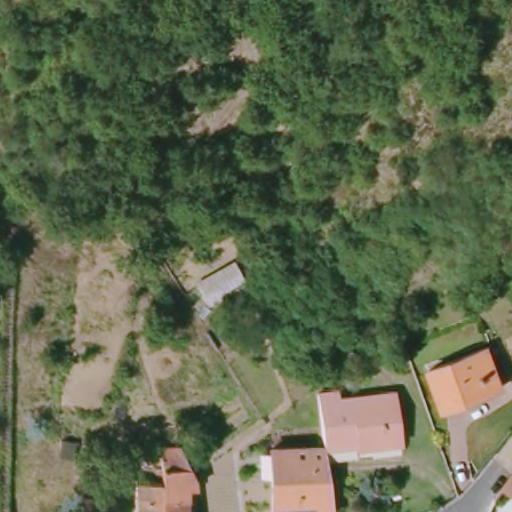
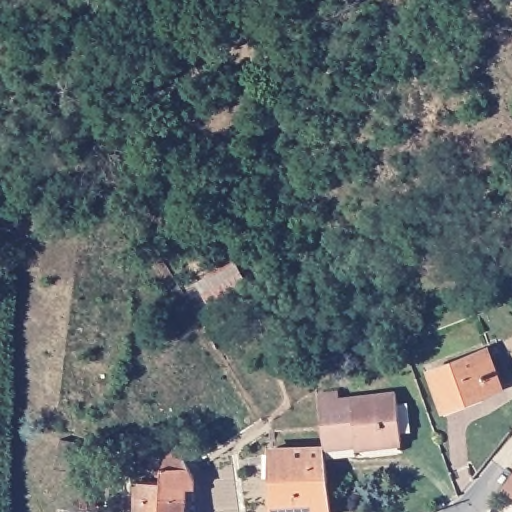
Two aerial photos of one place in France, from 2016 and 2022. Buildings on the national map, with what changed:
unchanged [(480,391),(478,387),(440,403),(425,368),(482,344),(500,382),(480,391)]
unchanged [(351,445),(320,448),(313,391),(337,389),(339,399),(392,394),(397,436),(397,444),(380,446),(365,448),(352,449),(351,445)]
unchanged [(161,454),(162,442),(179,443),(188,463),(193,474),(193,482),(194,512),(159,512),(160,479),(161,454)]
unchanged [(320,448),(327,511),(327,512),(264,512),(262,449),(320,448)]
unchanged [(512,466),(512,501),(494,490),(512,466)]
unchanged [(160,479),(159,512),(135,512),(135,478),(160,479)]
unchanged [(82,505),(82,495),(93,496),(92,505),(82,505)]

